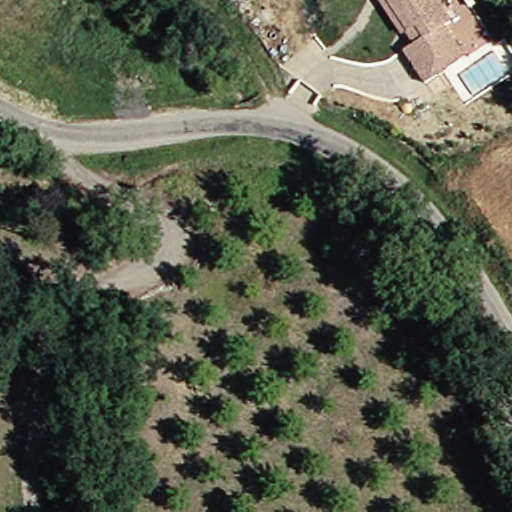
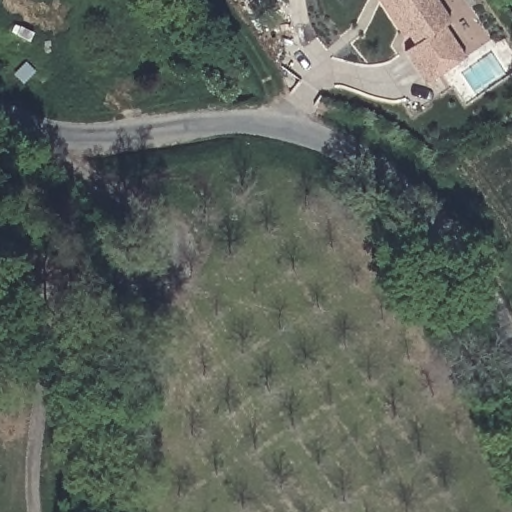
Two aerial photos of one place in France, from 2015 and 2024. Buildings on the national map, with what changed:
unchanged [(453,24),(475,56),(437,83),(415,51),(433,37),(426,26),(417,32),(394,0),(446,0),(459,19),(453,24)]

